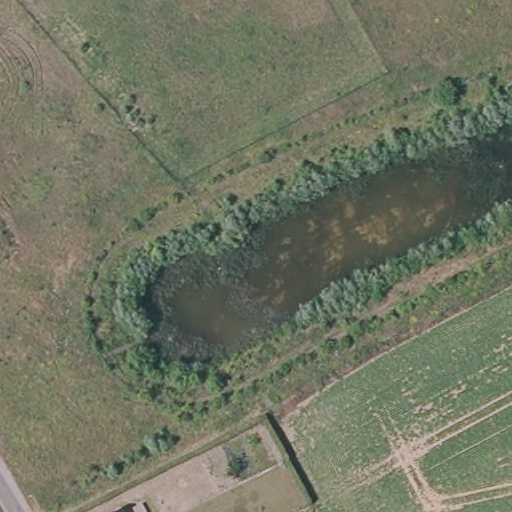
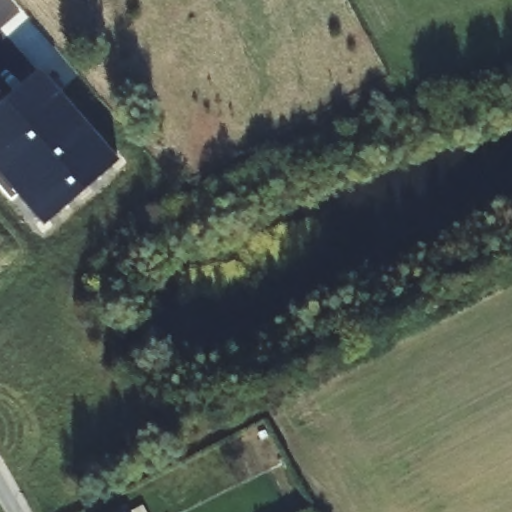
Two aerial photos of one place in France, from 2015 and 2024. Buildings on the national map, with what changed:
new [(0,175),(0,95),(4,100),(38,70),(117,160),(43,226),(0,175)]
unchanged [(123,512),(129,509),(130,512),(123,512)]

